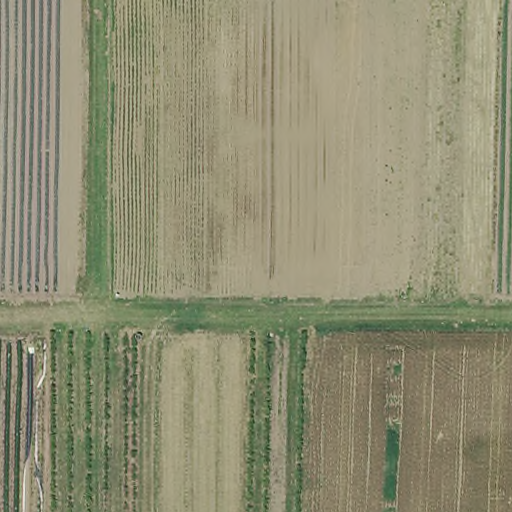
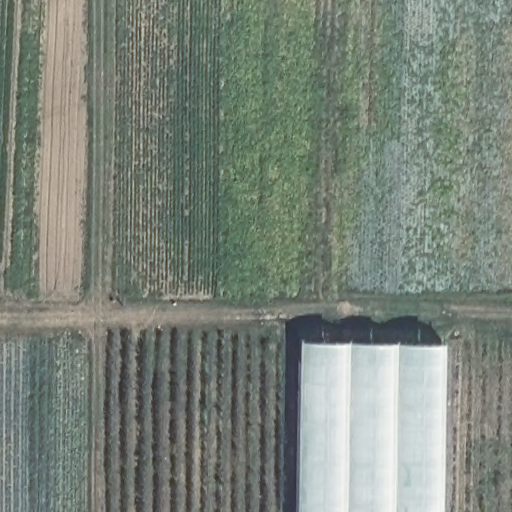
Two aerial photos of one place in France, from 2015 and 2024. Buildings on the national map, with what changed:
new [(447,343),(444,512),(295,512),(299,340),(447,343)]

